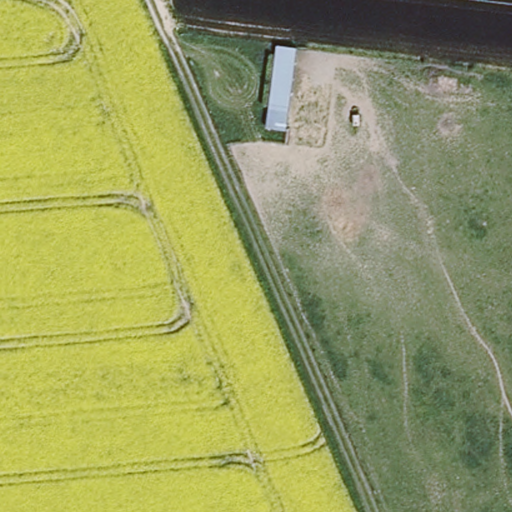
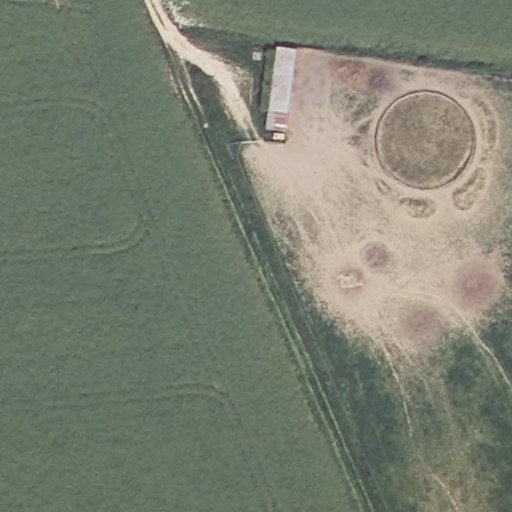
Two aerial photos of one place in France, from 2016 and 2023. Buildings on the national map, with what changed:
unchanged [(296,49),(287,111),(268,109),(276,47),(296,49)]

